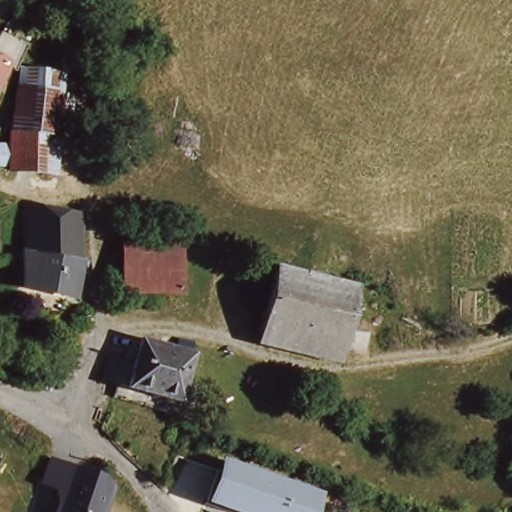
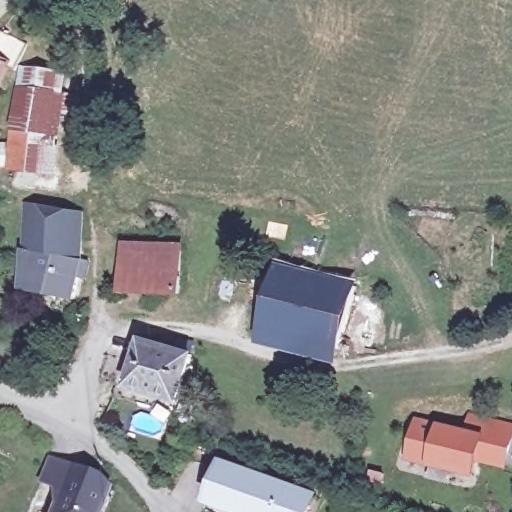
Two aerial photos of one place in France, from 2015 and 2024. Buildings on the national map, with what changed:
unchanged [(0,88),(0,43),(0,42),(28,53),(21,70),(10,67),(7,72),(0,88)]
unchanged [(14,181),(13,151),(17,121),(21,97),(29,99),(32,77),(60,83),(55,104),(72,108),(75,127),(63,125),(57,187),(14,181)]
unchanged [(31,304),(32,266),(33,214),(70,216),(87,222),(90,258),(80,306),(31,304)]
unchanged [(182,307),(125,301),(128,246),(188,252),(182,307)]
unchanged [(343,356),(268,341),(281,277),(356,292),(343,356)]
unchanged [(120,385),(106,381),(114,354),(136,361),(145,340),(154,342),(155,337),(164,340),(162,345),(195,354),(176,416),(116,397),(120,385)]
new [(437,422),(461,428),(467,415),(512,426),(512,444),(506,470),(478,467),(476,478),(450,472),(450,484),(426,479),(430,468),(403,462),(413,418),(436,426),(437,422)]
unchanged [(319,495),(312,512),(226,512),(205,505),(220,460),(319,495)]
unchanged [(115,497),(111,505),(107,503),(103,512),(55,512),(56,506),(58,506),(61,507),(66,498),(61,497),(43,490),(53,464),(69,470),(95,480),(102,483),(108,488),(115,497)]

